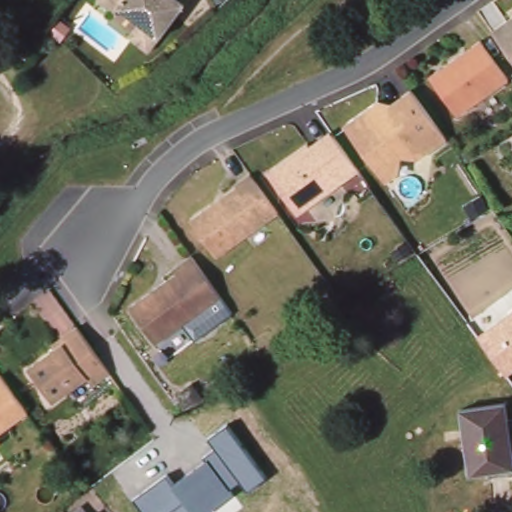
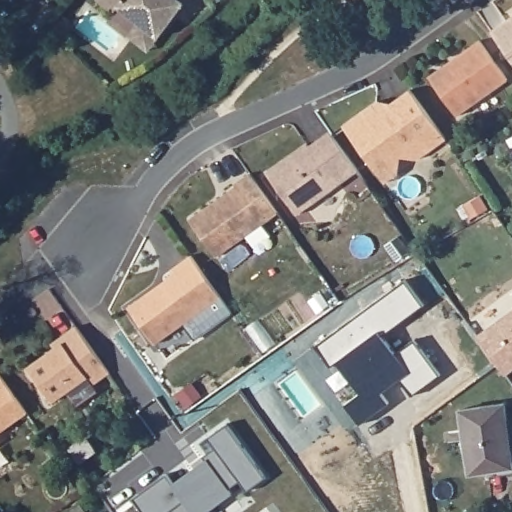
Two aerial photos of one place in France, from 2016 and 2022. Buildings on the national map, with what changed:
unchanged [(126,40),(134,26),(96,3),(98,0),(192,0),(185,4),(148,55),(126,40)]
unchanged [(488,36),(512,20),(512,68),(488,36)]
unchanged [(479,46),(504,82),(456,115),(430,80),(479,46)]
unchanged [(442,141),(412,163),(400,161),(398,174),(383,183),(342,128),(377,104),(393,106),(410,93),(442,141)]
unchanged [(307,144),(309,147),(312,151),(332,136),(358,172),(297,215),(267,173),(307,144)]
unchanged [(275,214),(214,261),(189,226),(249,179),(275,214)]
unchanged [(177,277),(172,270),(188,260),(218,299),(154,347),(128,311),(177,277)]
new [(413,395),(400,379),(382,391),(389,403),(362,424),(347,403),(361,393),(340,360),(334,365),(319,343),(407,278),(424,302),(384,334),(398,353),(416,340),(439,373),(413,395)]
unchanged [(507,376),(478,335),(512,310),(512,372),(507,376)]
unchanged [(53,354),(50,347),(75,330),(108,375),(96,386),(88,379),(53,404),(30,372),(53,354)]
unchanged [(0,439),(0,382),(26,420),(0,439)]
unchanged [(506,403),(512,446),(512,467),(472,473),(463,409),(506,403)]
unchanged [(249,490),(241,479),(229,488),(234,494),(210,512),(145,512),(135,498),(168,474),(175,483),(206,460),(203,456),(217,447),(209,438),(227,424),(267,477),(249,490)]
unchanged [(90,505),(95,512),(80,512),(90,505)]

